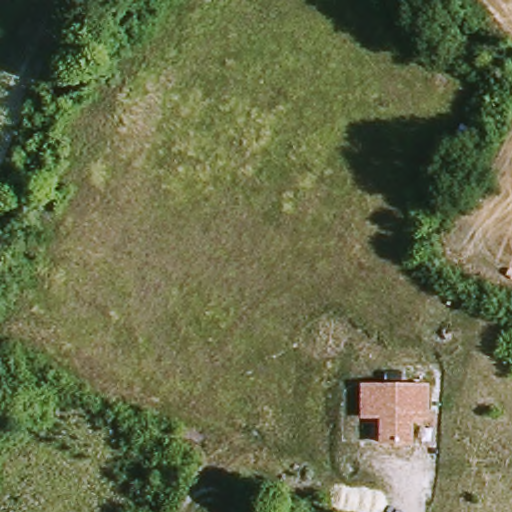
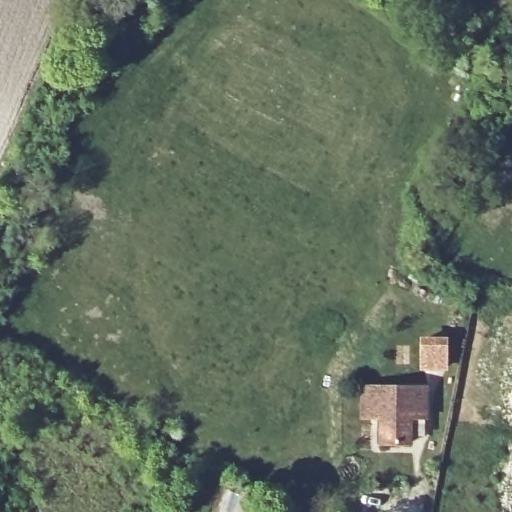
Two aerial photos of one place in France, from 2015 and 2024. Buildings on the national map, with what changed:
new [(422,338),(444,339),(444,365),(422,365),(422,338)]
unchanged [(431,385),(431,421),(414,421),(414,443),(380,444),(381,418),(360,418),(361,383),(431,385)]

